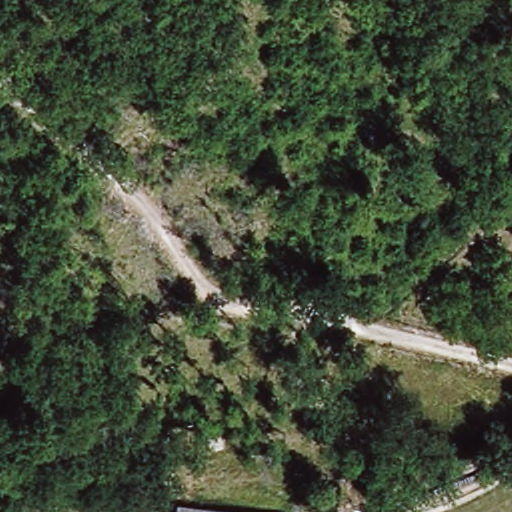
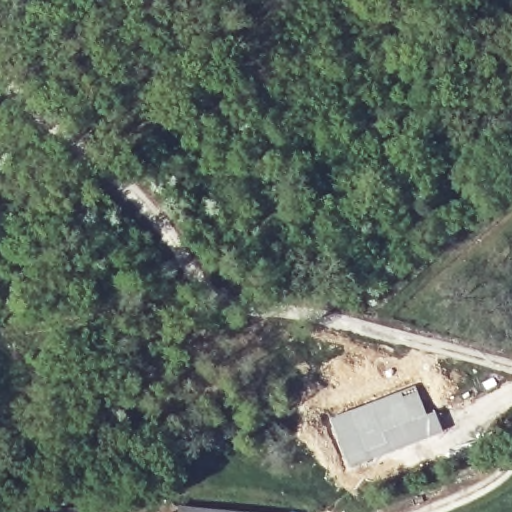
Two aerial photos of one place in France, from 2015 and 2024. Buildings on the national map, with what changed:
new [(415,383),(427,412),(435,410),(442,433),(347,471),(327,417),(415,383)]
unchanged [(177,502),(258,512),(177,512),(177,502)]

